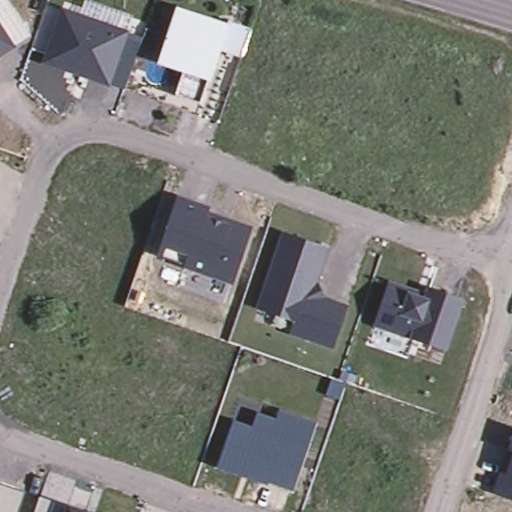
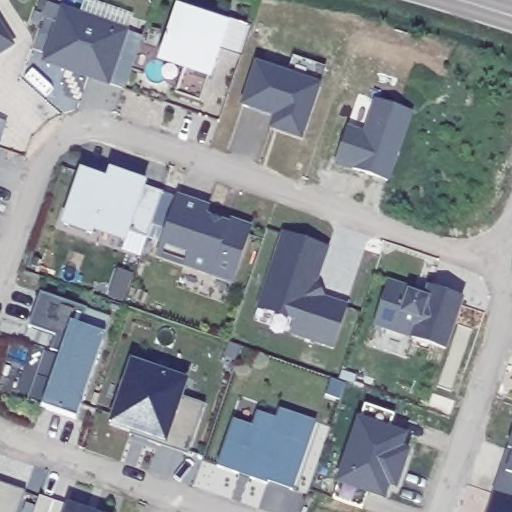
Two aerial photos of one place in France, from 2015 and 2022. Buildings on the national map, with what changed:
unchanged [(46,54),(62,9),(127,31),(108,84),(73,71),(43,61),(46,54)]
unchanged [(175,95),(188,57),(165,50),(178,10),(226,25),(213,65),(201,104),(175,95)]
unchanged [(0,53),(0,28),(9,41),(12,46),(0,53)]
new [(323,83),(304,141),(268,130),(272,116),(240,105),(255,62),(288,72),(293,59),(324,68),(323,83)]
new [(413,112),(389,182),(334,164),(347,125),(364,131),(374,99),(413,112)]
new [(163,244),(131,230),(127,244),(95,234),(94,236),(62,226),(79,170),(106,179),(109,169),(148,181),(146,185),(178,198),(163,244)]
unchanged [(178,198),(207,208),(205,213),(249,228),(231,280),(159,255),(178,198)]
unchanged [(313,286),(318,297),(345,306),(331,346),(292,332),(296,318),(272,310),(263,293),(283,234),(326,249),(313,286)]
unchanged [(412,290),(410,295),(425,300),(429,288),(462,299),(445,348),(374,324),(388,282),(412,290)]
new [(78,420),(43,408),(61,351),(53,349),(58,335),(31,326),(40,294),(86,310),(80,327),(106,335),(78,420)]
new [(190,377),(184,396),(205,405),(189,454),(167,446),(109,425),(130,360),(190,377)]
new [(395,415),(389,428),(409,435),(404,448),(411,450),(398,490),(390,488),(386,501),(367,495),(363,508),(334,498),(339,484),(335,482),(357,416),(362,418),(366,405),(395,415)]
unchanged [(233,420),(253,425),(257,413),(278,420),(281,411),(316,425),(294,490),(219,467),(233,420)]
unchanged [(512,439),(512,450),(508,449),(512,439)]
unchanged [(502,470),(507,470),(512,452),(512,498),(494,491),(502,470)]
unchanged [(24,493),(18,512),(0,512),(0,485),(24,493)]
new [(486,512),(494,491),(512,498),(512,512),(486,512)]
unchanged [(68,506),(87,512),(35,512),(40,497),(68,506)]

